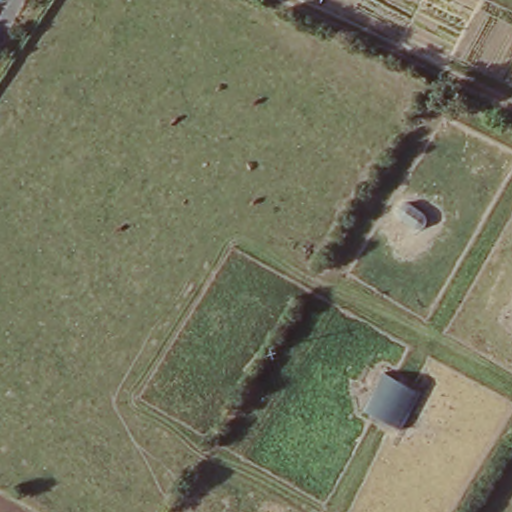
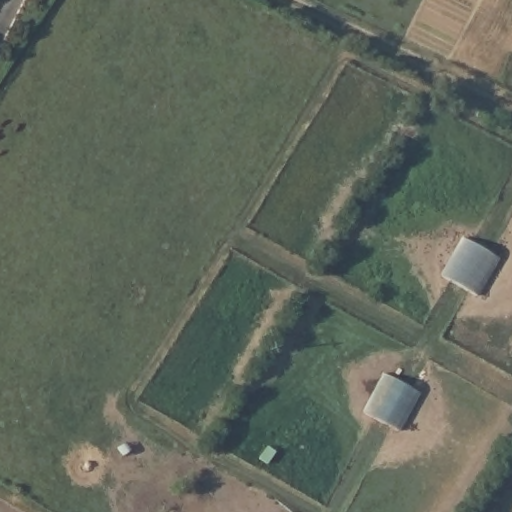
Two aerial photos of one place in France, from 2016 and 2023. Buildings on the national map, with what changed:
new [(443,277),(464,240),(497,258),(476,295),(443,277)]
unchanged [(365,411),(386,374),(419,392),(398,429),(365,411)]

